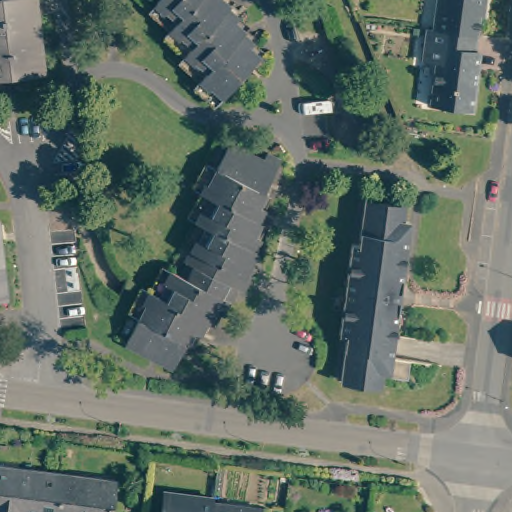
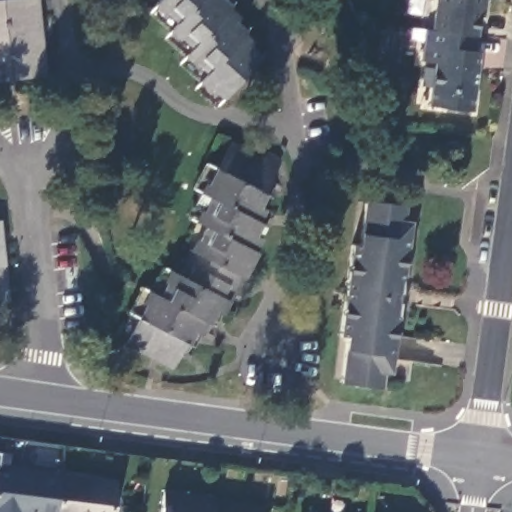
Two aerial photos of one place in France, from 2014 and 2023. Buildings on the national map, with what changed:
unchanged [(10,0),(36,0),(43,77),(30,79),(0,82),(0,1),(10,0)]
unchanged [(248,50),(258,59),(248,70),(223,98),(203,80),(207,74),(186,54),(192,47),(173,29),(179,23),(155,3),(158,0),(218,0),(238,18),(233,26),(253,43),(248,50)]
unchanged [(433,33),(437,0),(483,0),(478,39),(433,33)]
unchanged [(473,76),(477,76),(472,114),(431,108),(437,66),(423,63),(428,32),(433,33),(478,39),(473,76)]
unchanged [(239,150),(262,162),(265,156),(266,154),(279,161),(270,180),(256,207),(265,210),(251,234),(260,239),(249,263),(255,267),(241,293),(233,289),(220,315),(211,310),(198,334),(191,330),(178,356),(171,368),(126,345),(151,295),(159,298),(173,273),(180,277),(205,228),(198,224),(210,200),(202,196),(229,145),(239,150)]
unchanged [(357,233),(361,206),(377,208),(383,208),(403,212),(402,225),(409,227),(405,262),(407,263),(409,265),(409,267),(408,268),(406,270),(404,270),(403,276),(401,299),(399,314),(397,326),(396,333),(396,340),(391,377),(389,377),(383,376),(381,390),(370,389),(353,386),(340,385),(345,341),(340,339),(342,319),(340,317),(341,314),(343,311),(344,306),(342,303),(342,300),(345,298),(346,291),(343,288),(344,284),(347,282),(348,276),(346,273),(346,271),(349,268),(352,246),(355,246),(357,233)]
unchanged [(3,221),(12,302),(0,303),(0,221),(3,221)]
unchanged [(58,475),(53,512),(0,512),(0,468),(58,475)]
unchanged [(109,512),(53,512),(58,475),(113,483),(109,512)]
unchanged [(210,512),(160,512),(162,491),(212,498),(211,502),(210,512)]
unchanged [(261,509),(261,512),(210,512),(211,502),(261,509)]

